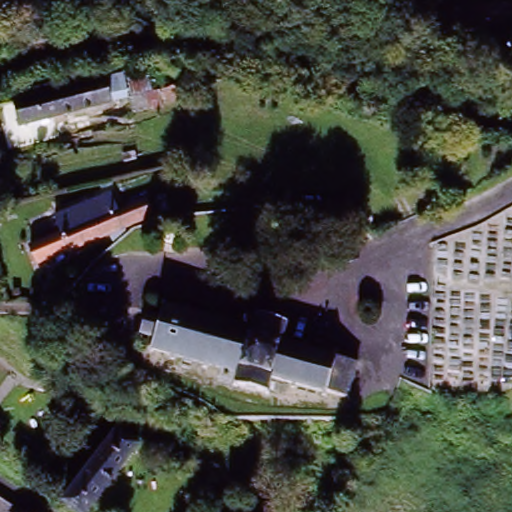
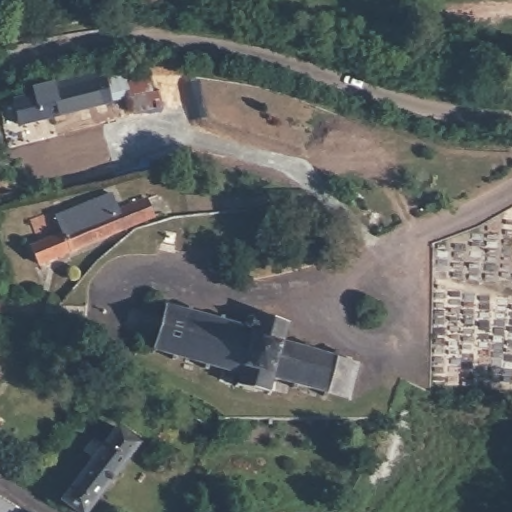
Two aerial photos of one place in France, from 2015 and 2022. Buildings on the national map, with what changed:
unchanged [(16,130),(10,103),(108,77),(116,104),(16,130)]
unchanged [(126,81),(135,80),(154,77),(156,90),(168,89),(171,106),(141,112),(132,114),(126,81)]
unchanged [(93,219),(90,207),(107,204),(110,215),(156,201),(161,220),(62,251),(56,231),(93,219)]
unchanged [(256,310),(301,320),(297,340),(360,352),(351,398),(286,385),(283,398),(238,388),(241,375),(143,354),(152,311),(252,333),(256,310)]
unchanged [(89,512),(77,512),(62,497),(126,428),(148,447),(89,512)]
unchanged [(15,512),(0,512),(0,499),(15,512)]

